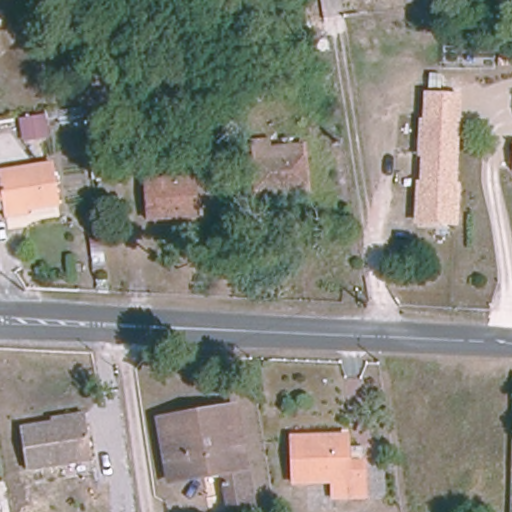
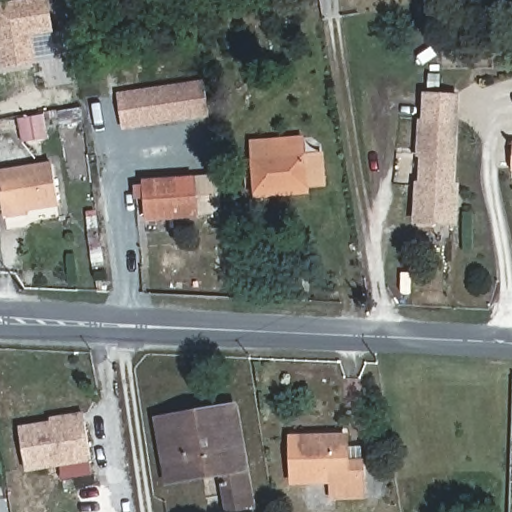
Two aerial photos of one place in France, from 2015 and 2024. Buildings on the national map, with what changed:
new [(35,65),(0,70),(0,2),(15,0),(45,0),(50,34),(31,37),(35,65)]
new [(204,83),(209,115),(125,126),(120,95),(204,83)]
unchanged [(453,92),(450,181),(453,182),(452,220),(415,219),(416,181),(420,181),(420,150),(417,150),(418,119),(421,119),(422,91),(453,92)]
unchanged [(47,137),(23,141),(20,123),(45,120),(47,137)]
unchanged [(258,197),(257,187),(252,142),(281,140),(290,139),(291,143),(300,142),(305,182),(305,192),(258,197)]
unchanged [(0,216),(0,214),(0,173),(47,165),(52,202),(24,208),(24,212),(0,216)]
unchanged [(191,177),(195,214),(149,218),(146,181),(191,177)]
unchanged [(235,407),(252,505),(227,510),(220,471),(169,480),(157,420),(235,407)]
unchanged [(25,470),(19,427),(51,422),(50,418),(84,413),(85,422),(91,459),(25,470)]
unchanged [(346,436),(346,460),(362,460),(362,495),(331,495),(331,480),(292,480),(292,436),(346,436)]

